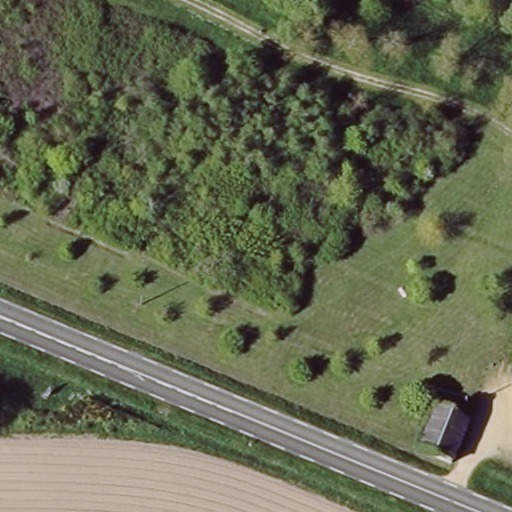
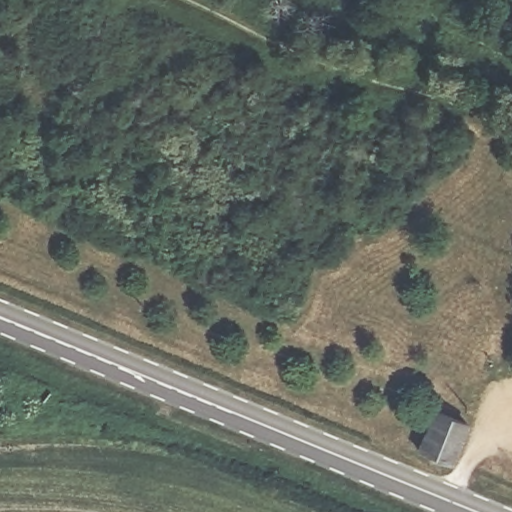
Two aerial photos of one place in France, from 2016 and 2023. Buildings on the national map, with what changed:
unchanged [(446,467),(415,453),(431,414),(460,426),(446,467)]

